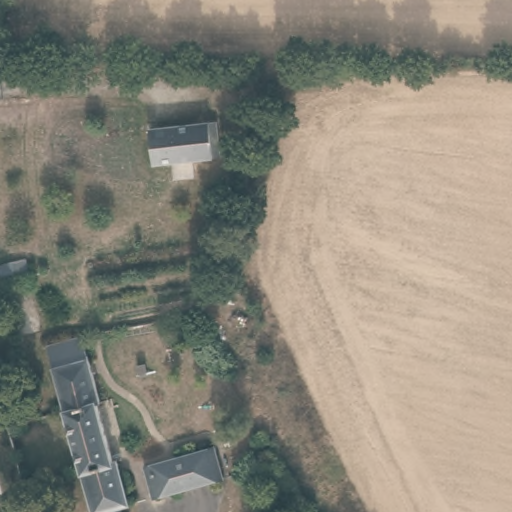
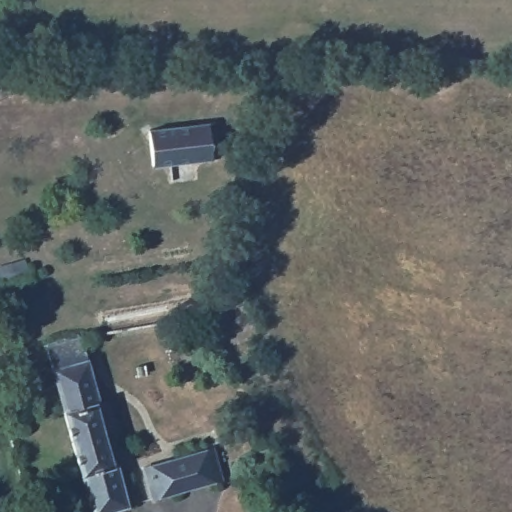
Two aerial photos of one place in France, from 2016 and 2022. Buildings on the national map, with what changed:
unchanged [(205,123),(209,161),(152,166),(149,131),(205,123)]
unchanged [(0,275),(0,267),(26,260),(29,274),(26,275),(1,280),(0,275)]
unchanged [(41,341),(76,331),(95,397),(91,398),(107,456),(111,455),(124,499),(115,502),(116,504),(117,506),(118,509),(118,512),(101,512),(100,510),(100,509),(100,507),(100,506),(89,509),(41,341)]
unchanged [(206,449),(214,447),(222,478),(215,480),(160,496),(153,498),(145,467),(151,465),(206,449)]

